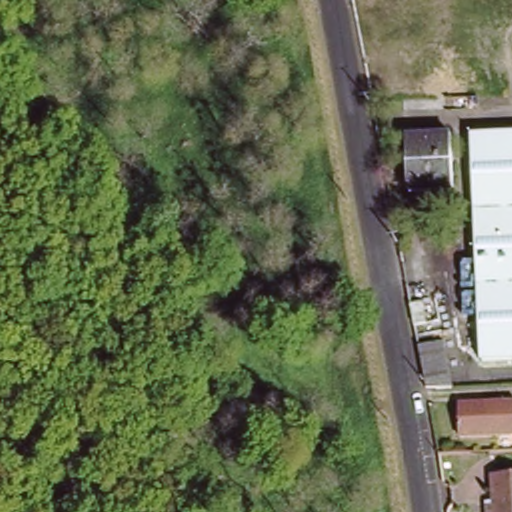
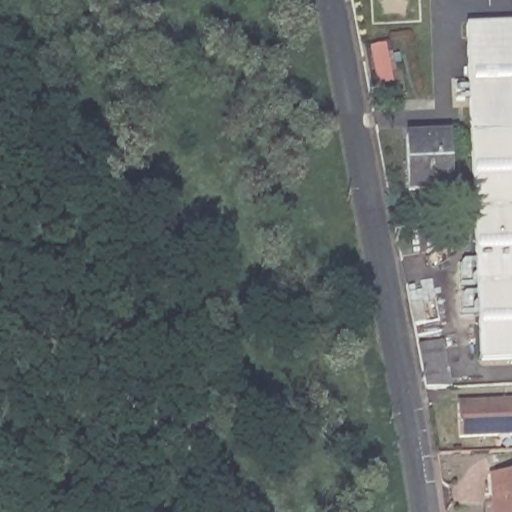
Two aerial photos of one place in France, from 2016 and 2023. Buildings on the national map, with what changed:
demolished [(380,41),(378,0),(423,0),(424,40),(380,41)]
new [(468,26),(512,24),(512,134),(474,135),(468,26)]
unchanged [(512,134),(512,358),(482,360),(474,135),(512,134)]
unchanged [(452,140),(455,193),(411,194),(409,142),(452,140)]
unchanged [(419,347),(446,342),(454,388),(427,389),(419,347)]
unchanged [(512,401),(512,435),(488,437),(463,438),(461,414),(461,405),(512,401)]
unchanged [(512,475),(512,512),(496,512),(494,476),(512,475)]

